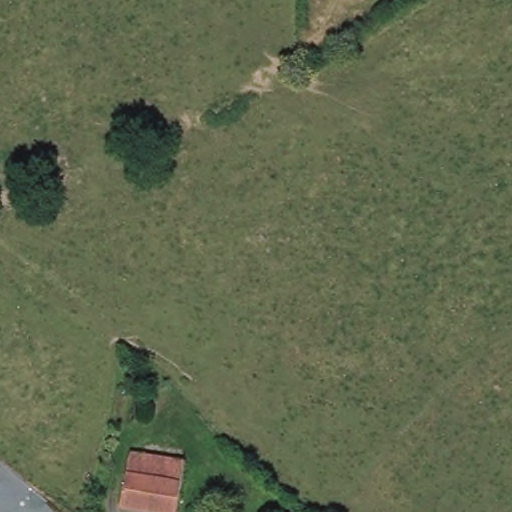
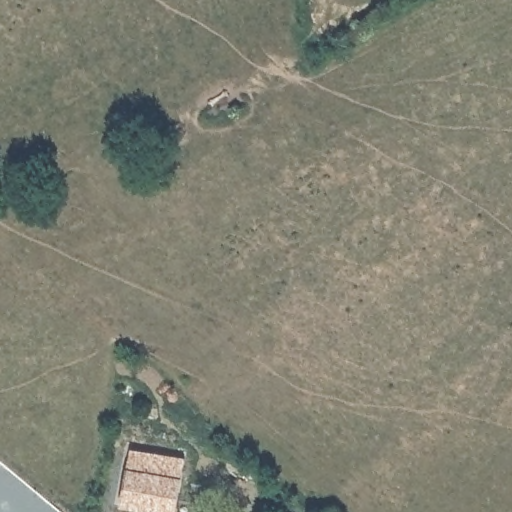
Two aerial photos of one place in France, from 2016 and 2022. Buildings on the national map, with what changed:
unchanged [(150,512),(126,508),(126,507),(134,453),(189,462),(182,512),(150,512)]

